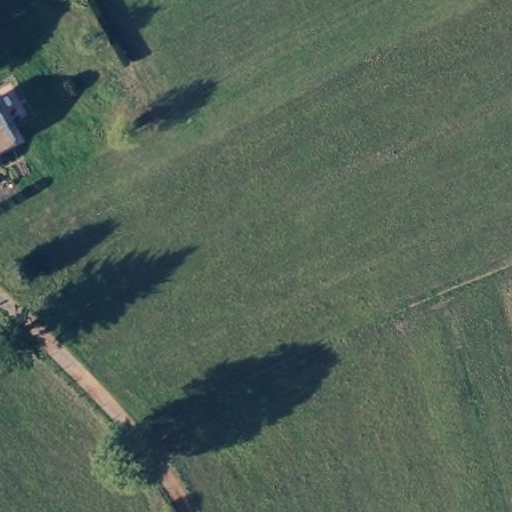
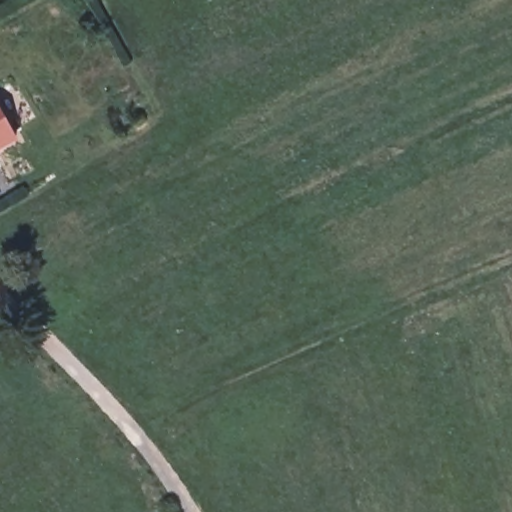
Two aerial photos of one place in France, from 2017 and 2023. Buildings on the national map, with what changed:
unchanged [(20,132),(0,144),(0,96),(20,132)]

